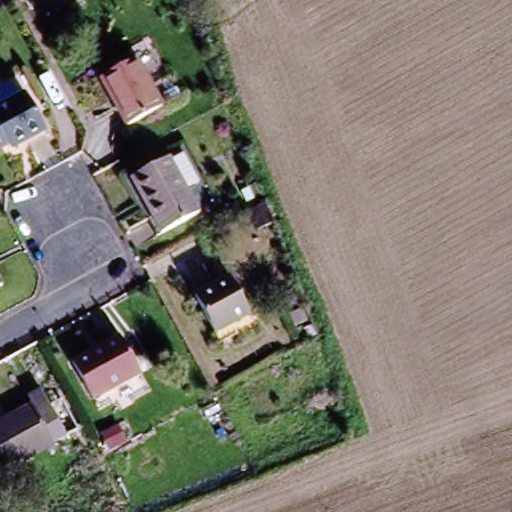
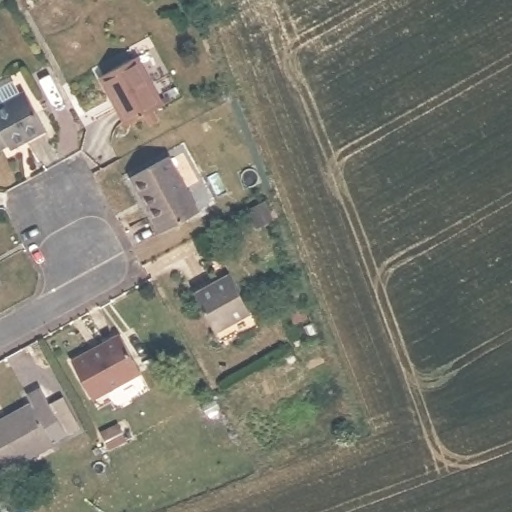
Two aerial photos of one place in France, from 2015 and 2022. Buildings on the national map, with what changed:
unchanged [(127,126),(101,79),(132,61),(160,109),(127,126)]
unchanged [(0,113),(39,92),(56,124),(21,143),(18,140),(1,149),(0,148),(0,113)]
unchanged [(155,233),(129,180),(178,156),(192,184),(178,191),(189,215),(155,233)]
unchanged [(212,330),(194,295),(229,277),(247,312),(212,330)]
unchanged [(67,366),(117,338),(136,373),(86,400),(67,366)]
unchanged [(46,408),(64,441),(0,473),(0,425),(31,407),(34,413),(46,408)]

